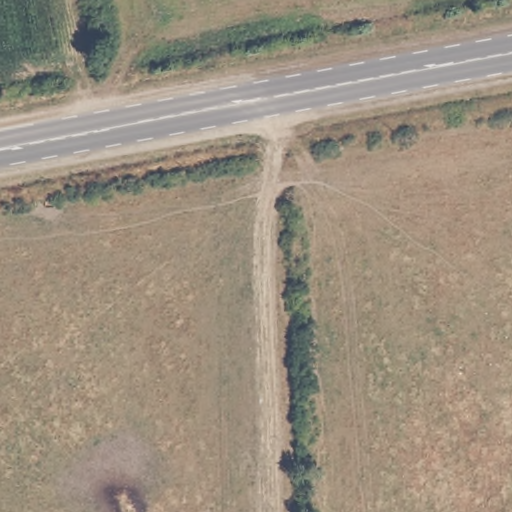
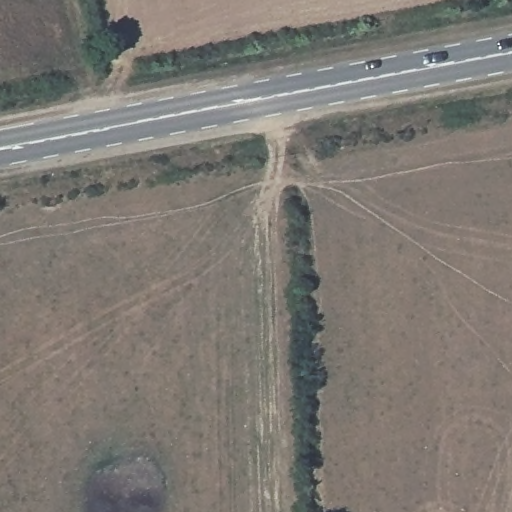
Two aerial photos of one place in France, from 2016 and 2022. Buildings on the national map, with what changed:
[]

